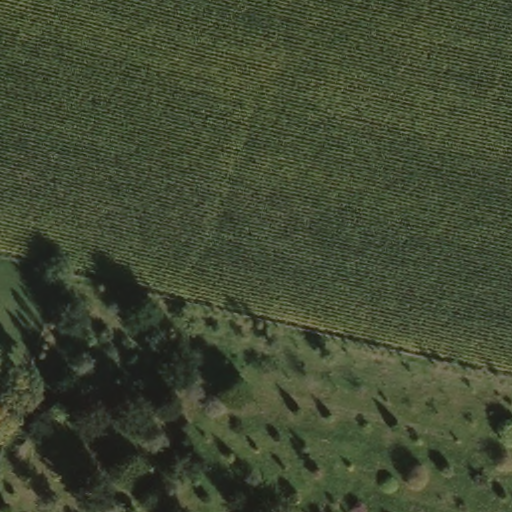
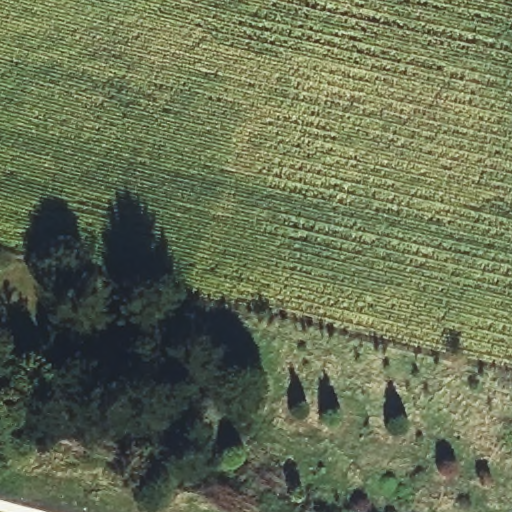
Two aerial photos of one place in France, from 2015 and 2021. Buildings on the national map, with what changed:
[]

